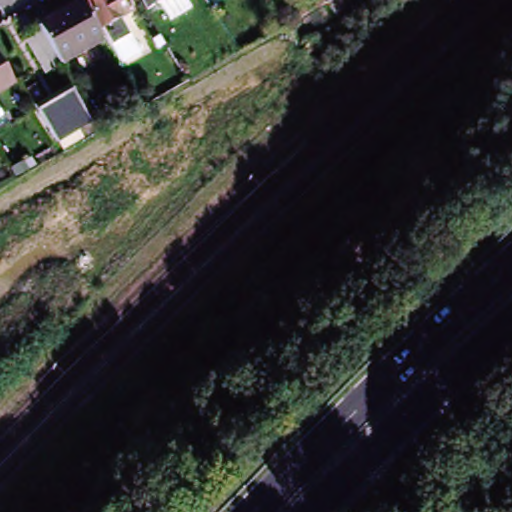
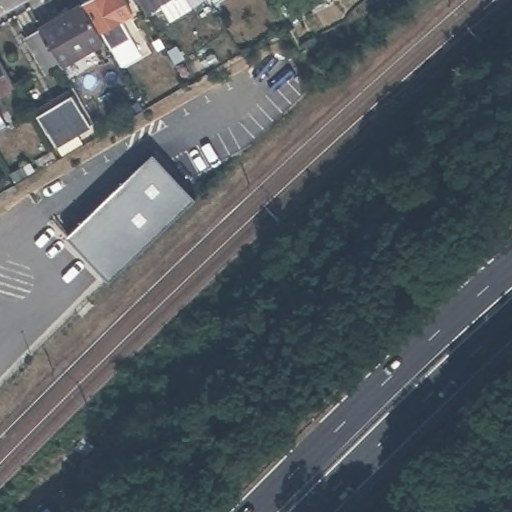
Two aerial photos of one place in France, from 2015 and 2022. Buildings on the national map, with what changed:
unchanged [(35,24),(78,0),(80,0),(101,38),(57,62),(41,71),(20,33),(35,24)]
unchanged [(123,0),(128,7),(118,13),(98,24),(84,0),(123,0)]
unchanged [(164,0),(149,9),(144,0),(164,0)]
unchanged [(304,1),(306,0),(333,0),(334,1),(325,6),(300,21),(292,9),(304,1)]
unchanged [(138,49),(114,62),(104,44),(108,42),(98,24),(118,13),(138,49)]
unchanged [(1,61),(1,62),(2,63),(3,64),(3,66),(4,66),(5,68),(5,69),(6,70),(6,71),(7,73),(8,74),(9,75),(10,76),(10,78),(11,78),(11,79),(11,80),(12,81),(13,82),(13,83),(0,90),(0,60),(1,61)]
unchanged [(83,147),(65,156),(61,151),(58,152),(39,118),(36,114),(70,94),(73,99),(92,134),(79,141),(83,147)]
unchanged [(0,116),(0,103),(6,113),(0,116)]
new [(109,279),(66,234),(153,151),(195,196),(109,279)]
unchanged [(9,179),(20,172),(26,168),(31,177),(25,180),(14,187),(9,179)]

